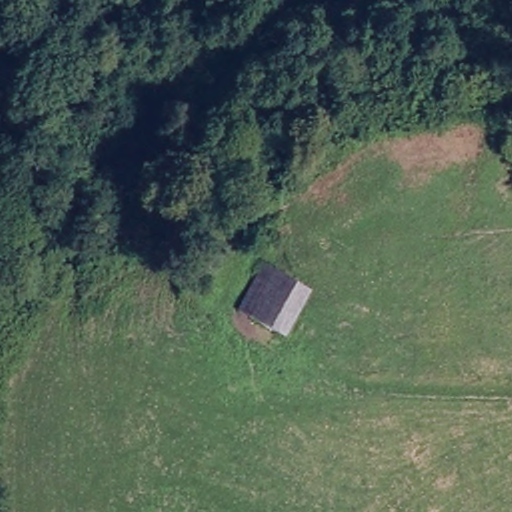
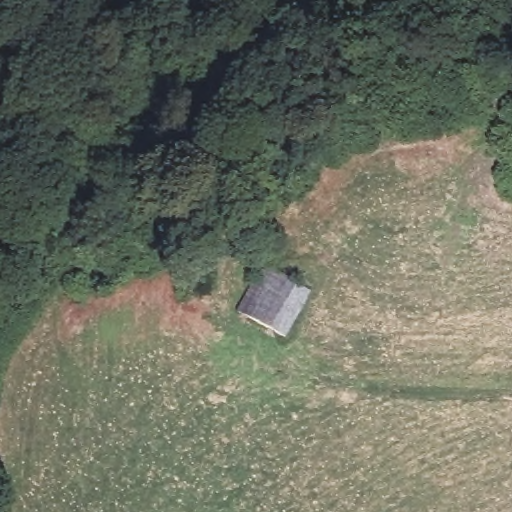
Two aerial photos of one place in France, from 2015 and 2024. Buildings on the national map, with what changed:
unchanged [(244,316),(252,299),(268,271),(312,293),(285,339),(244,316)]

